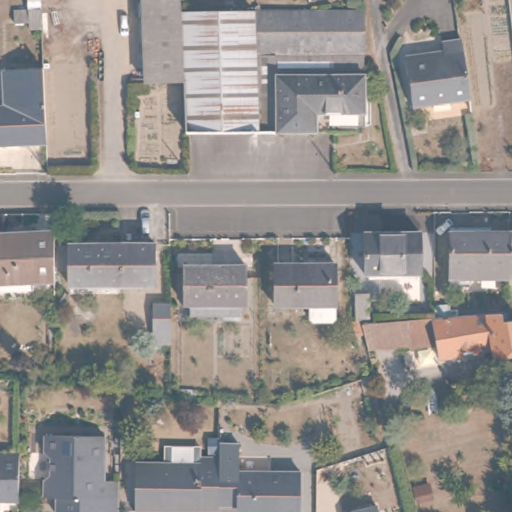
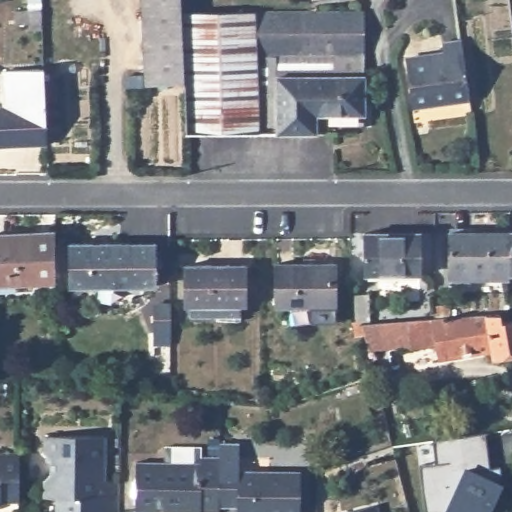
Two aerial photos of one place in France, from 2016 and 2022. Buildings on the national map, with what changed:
unchanged [(29,34),(30,28),(16,27),(15,10),(29,9),(28,0),(48,0),(50,34),(29,34)]
unchanged [(266,135),(237,135),(188,135),(187,92),(187,88),(149,89),(146,0),(184,0),(184,7),(184,15),(238,14),(264,14),(266,135)]
unchanged [(363,12),(364,129),(318,128),(318,135),(266,135),(264,14),(363,12)]
unchanged [(448,55),(447,42),(465,39),(473,99),(432,105),(418,106),(413,60),(424,58),(448,55)]
unchanged [(13,115),(13,76),(51,75),(52,100),(54,150),(0,152),(0,115),(13,115)]
unchanged [(57,232),(57,282),(0,283),(0,232),(57,232)]
unchanged [(420,234),(420,275),(364,276),(364,234),(420,234)]
unchanged [(454,237),(512,237),(512,279),(453,280),(454,237)]
unchanged [(123,286),(123,280),(73,280),(73,271),(62,271),(61,246),(73,246),(72,242),(157,241),(158,286),(123,286)]
unchanged [(340,301),(340,314),(336,317),(317,317),(314,314),(314,301),(281,301),(280,260),(340,260),(340,301)]
unchanged [(249,305),(244,306),(244,317),(195,317),(195,306),(190,306),(190,266),(249,265),(249,305)]
unchanged [(427,355),(423,340),(377,347),(367,350),(356,320),(357,289),(381,288),(381,318),(489,310),(491,319),(507,317),(508,320),(512,320),(512,338),(512,348),(479,353),(477,346),(427,355)]
unchanged [(156,350),(157,304),(177,305),(182,352),(156,350)]
new [(7,383),(6,394),(0,394),(0,383),(7,383)]
new [(502,485),(494,502),(506,501),(506,512),(443,512),(425,512),(419,465),(435,463),(432,440),(484,432),(489,467),(499,466),(502,485)]
unchanged [(96,510),(96,503),(85,503),(85,512),(62,512),(62,495),(48,495),(49,477),(55,471),(55,458),(49,452),(49,435),(110,435),(110,477),(124,477),(124,510),(96,510)]
unchanged [(244,443),(243,470),(305,471),(304,512),(251,512),(251,511),(242,511),(241,508),(225,507),(225,457),(225,443),(244,443)]
unchanged [(142,462),(170,462),(170,446),(205,447),(205,456),(225,457),(225,507),(225,511),(142,511),(142,462)]
unchanged [(3,500),(3,505),(0,505),(0,454),(20,454),(20,500),(3,500)]
unchanged [(383,512),(347,512),(347,511),(381,501),(383,512)]

